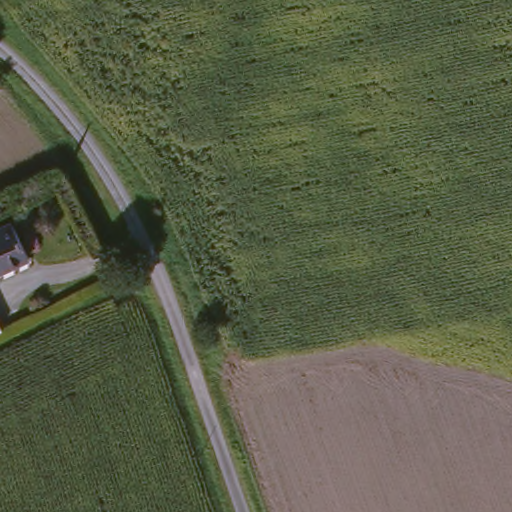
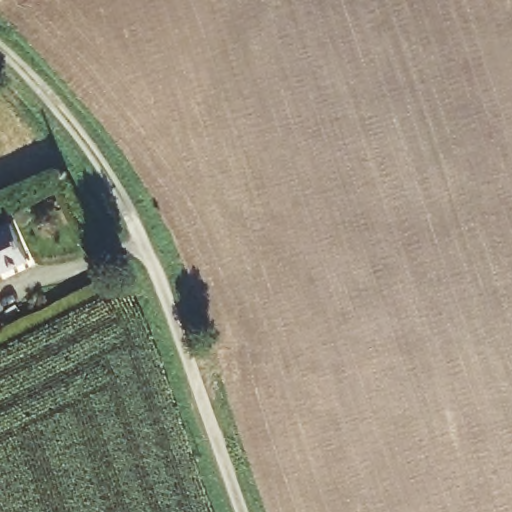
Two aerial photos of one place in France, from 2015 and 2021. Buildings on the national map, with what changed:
unchanged [(0,227),(1,227),(18,264),(0,272),(0,227)]

